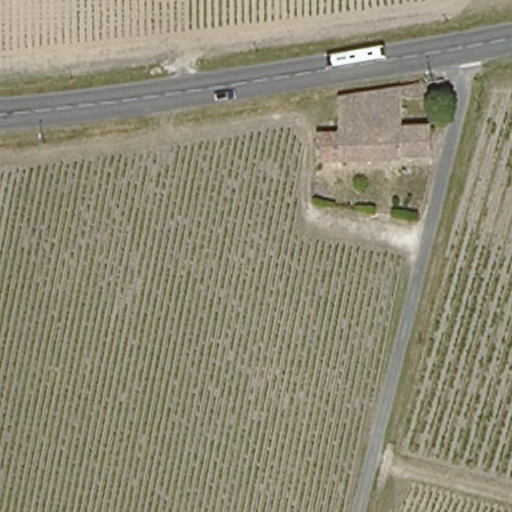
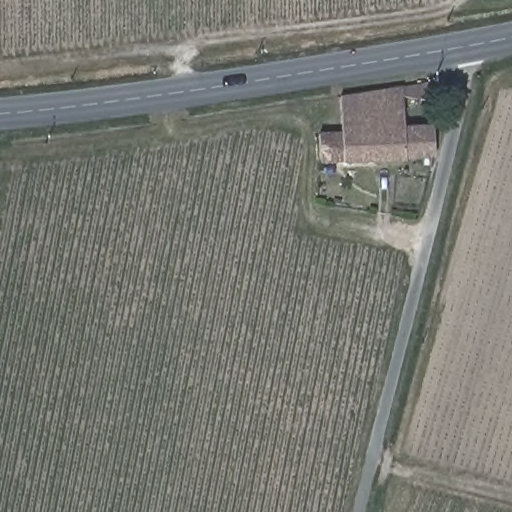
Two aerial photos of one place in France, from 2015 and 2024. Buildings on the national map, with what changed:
unchanged [(437,81),(439,95),(429,96),(426,83),(437,81)]
unchanged [(425,160),(404,160),(404,162),(316,165),(313,137),(335,135),(330,99),(420,84),(422,100),(400,102),(402,132),(423,130),(425,160)]

